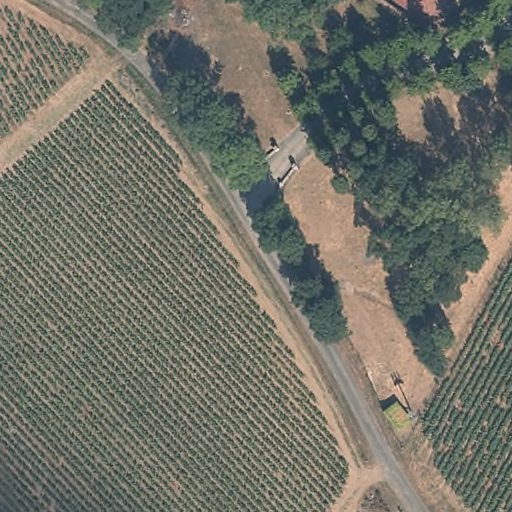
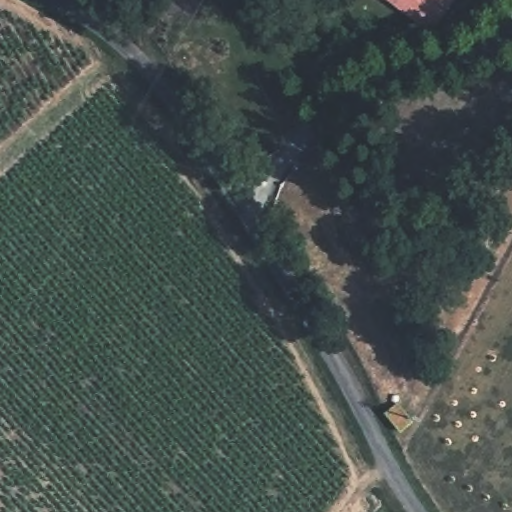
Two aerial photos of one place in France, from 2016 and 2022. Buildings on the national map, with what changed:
unchanged [(398,400),(414,420),(400,433),(383,410),(398,400)]

